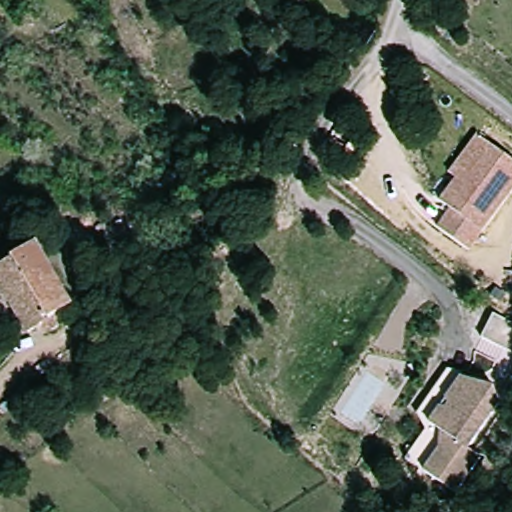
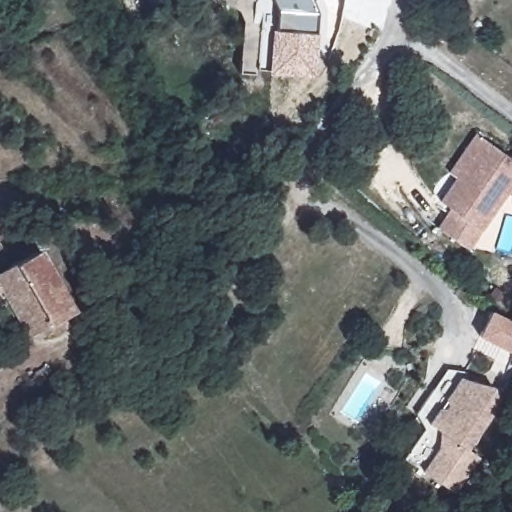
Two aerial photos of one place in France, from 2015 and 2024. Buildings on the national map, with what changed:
new [(276,30),(278,10),(271,0),(316,0),(315,1),(320,15),(316,78),(269,74),(273,30),(276,30)]
unchanged [(440,227),(454,209),(443,202),(460,177),(466,181),(493,144),(512,158),(512,192),(471,250),(440,227)]
unchanged [(63,317),(67,327),(51,336),(46,327),(28,338),(0,290),(0,271),(36,251),(73,312),(63,317)]
unchanged [(482,312),(512,331),(512,349),(511,352),(472,338),(482,312)]
unchanged [(447,430),(434,421),(430,427),(421,412),(437,388),(451,368),(464,377),(503,403),(472,447),(485,456),(460,490),(430,469),(445,447),(447,430)]

